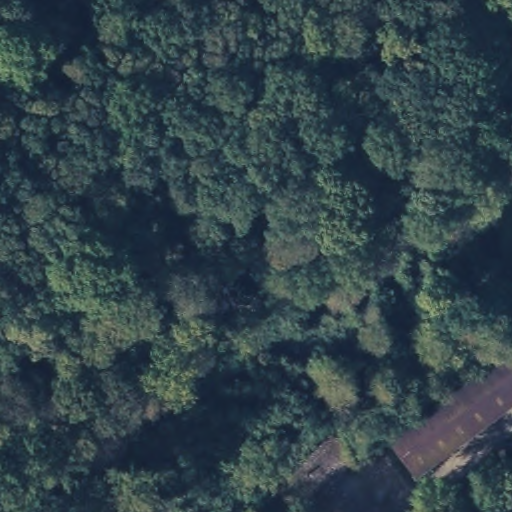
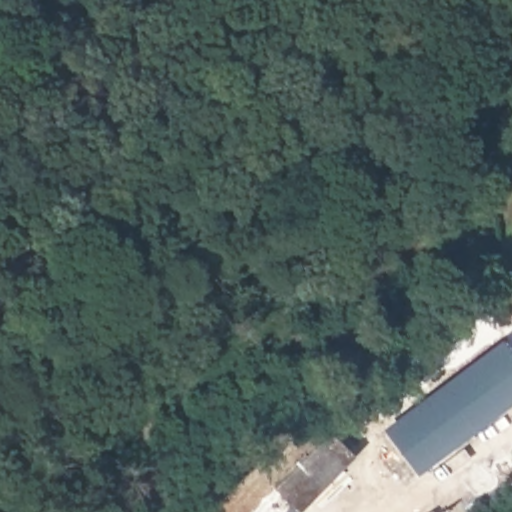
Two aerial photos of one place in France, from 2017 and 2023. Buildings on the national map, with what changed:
unchanged [(500,342),(512,357),(512,399),(416,476),(383,435),(500,342)]
unchanged [(275,490),(329,432),(350,451),(295,510),(275,490)]

